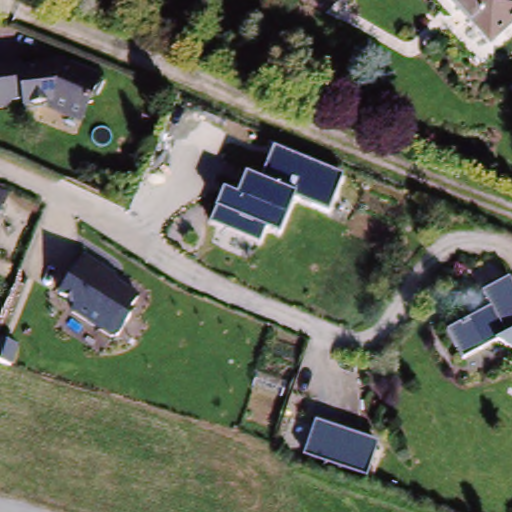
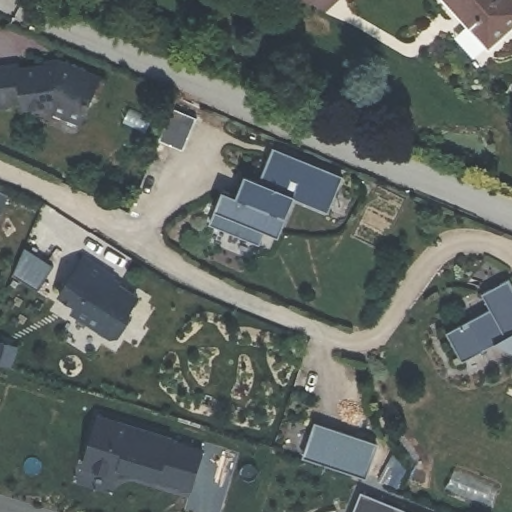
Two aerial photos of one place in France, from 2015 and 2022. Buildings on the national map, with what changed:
unchanged [(485,43),(445,0),(511,0),(512,1),(512,19),(485,43)]
unchanged [(22,108),(22,101),(11,103),(7,108),(0,108),(0,66),(20,65),(20,70),(47,67),(47,56),(57,56),(65,60),(101,77),(82,118),(80,121),(45,105),(22,108)]
unchanged [(209,224),(215,210),(223,190),(236,196),(245,174),(260,180),(275,146),(343,175),(327,211),(294,198),(280,236),(267,229),(260,245),(209,224)]
unchanged [(0,195),(0,192),(1,193),(0,195)]
unchanged [(113,341),(70,315),(74,308),(58,299),(85,259),(117,280),(119,284),(139,295),(113,341)]
unchanged [(495,346),(460,360),(448,328),(495,311),(489,295),(512,286),(512,354),(495,346)]
new [(101,418),(173,441),(173,444),(205,454),(193,491),(160,481),(162,476),(152,473),(150,478),(123,469),(120,479),(85,468),(101,418)]
unchanged [(377,446),(365,479),(303,458),(315,425),(377,446)]
new [(362,497),(401,512),(356,512),(362,497)]

